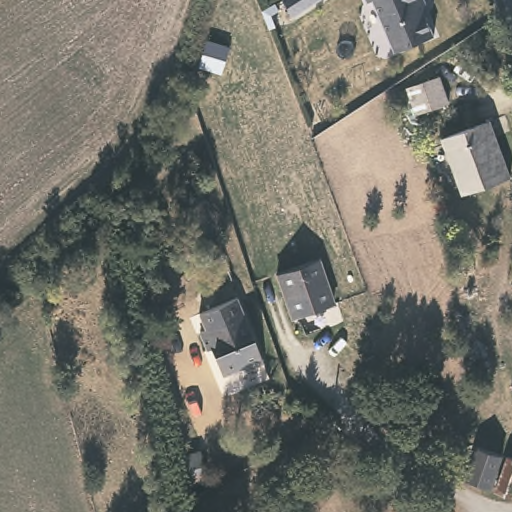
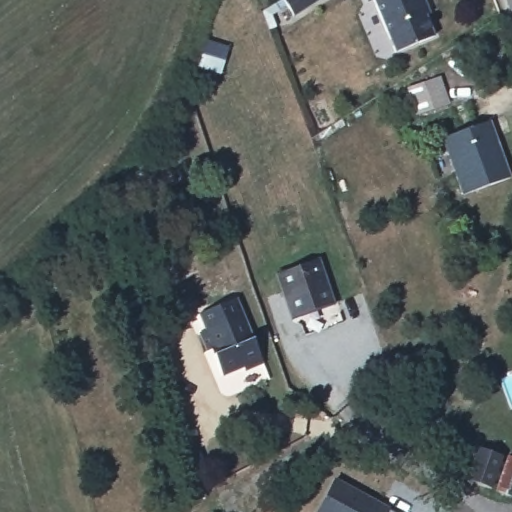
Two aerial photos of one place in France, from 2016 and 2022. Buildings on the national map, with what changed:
unchanged [(284,0),(317,0),(295,15),(284,0)]
unchanged [(396,46),(377,0),(421,0),(433,31),(396,46)]
unchanged [(232,44),(223,74),(199,67),(208,39),(232,44)]
unchanged [(448,105),(416,117),(407,90),(439,78),(448,105)]
unchanged [(511,178),(463,196),(442,141),(490,122),(511,178)]
unchanged [(337,301),(296,317),(280,273),(320,258),(337,301)]
unchanged [(232,312),(261,374),(250,379),(247,371),(242,373),(240,370),(220,377),(212,358),(216,357),(214,351),(207,353),(201,334),(206,332),(200,316),(217,309),(220,317),(232,312)]
unchanged [(497,456),(487,488),(458,478),(471,446),(497,456)]
unchanged [(512,486),(508,496),(492,490),(503,458),(512,461),(512,486)]
new [(333,477),(388,508),(394,512),(314,512),(333,477)]

